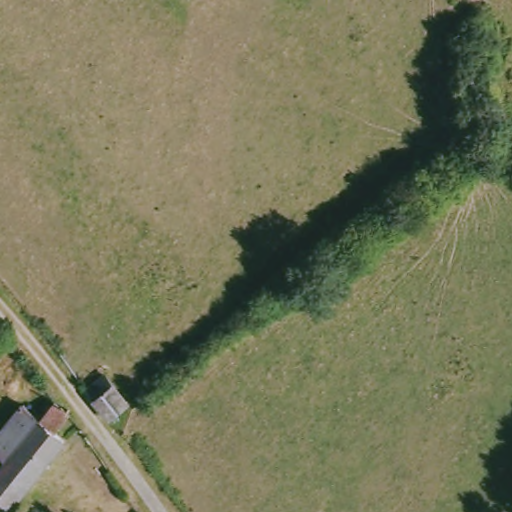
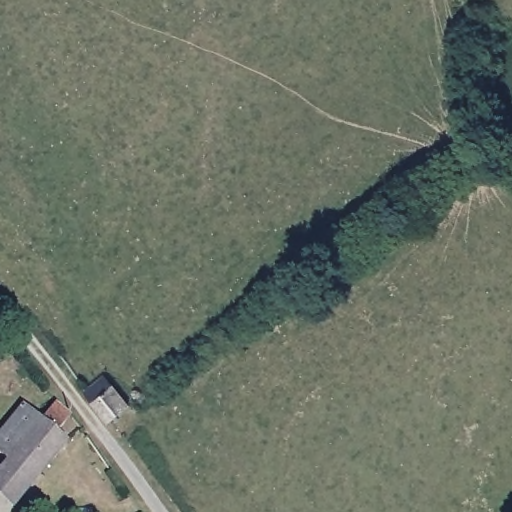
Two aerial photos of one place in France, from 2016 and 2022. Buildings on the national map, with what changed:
unchanged [(103,376),(127,406),(109,420),(84,393),(103,376)]
unchanged [(6,457),(0,453),(0,426),(20,401),(39,415),(52,398),(68,413),(57,428),(66,437),(11,506),(6,512),(0,512),(0,464),(6,457)]

